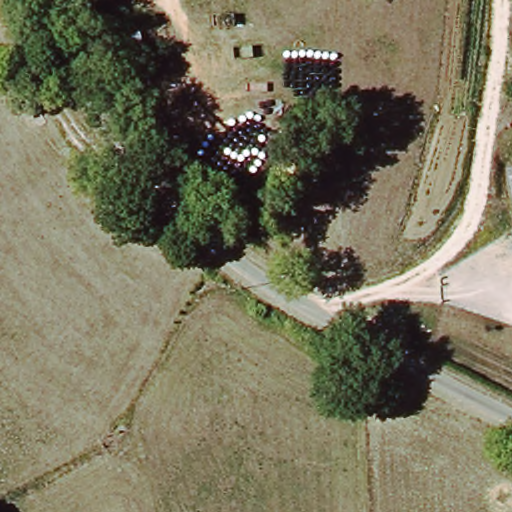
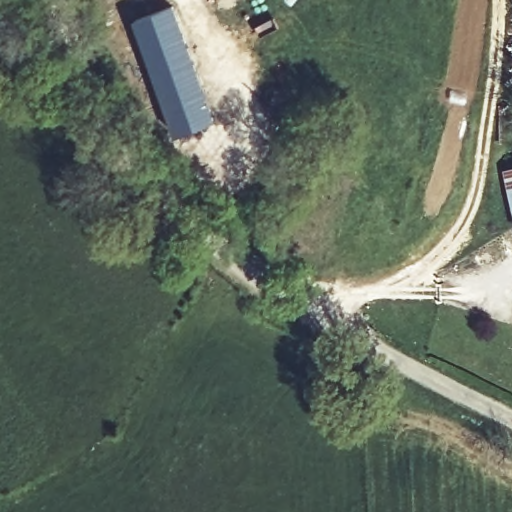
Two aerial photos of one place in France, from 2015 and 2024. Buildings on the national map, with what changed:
new [(175,4),(217,119),(177,134),(134,19),(175,4)]

